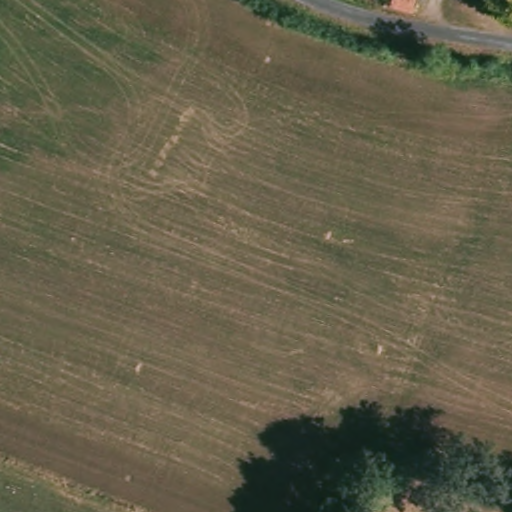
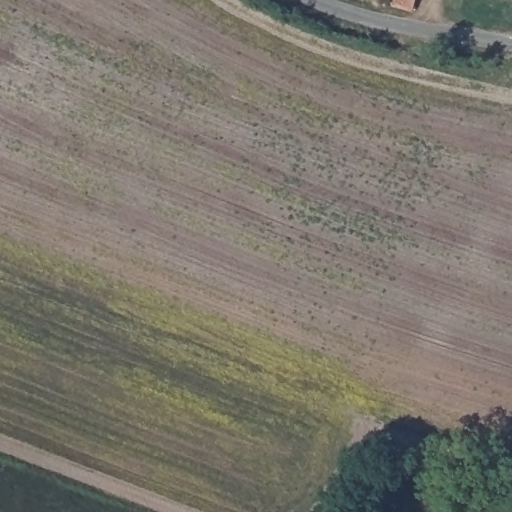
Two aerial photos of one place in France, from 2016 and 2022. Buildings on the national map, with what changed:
unchanged [(378,0),(415,0),(412,15),(391,9),(377,3),(378,0)]

